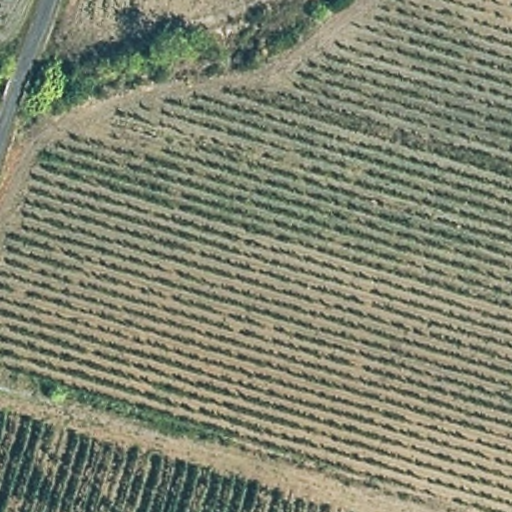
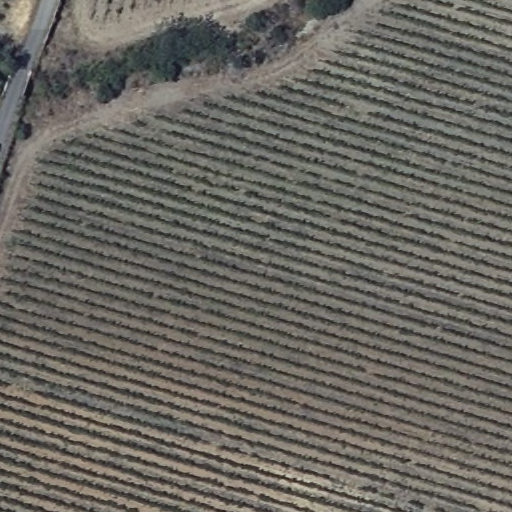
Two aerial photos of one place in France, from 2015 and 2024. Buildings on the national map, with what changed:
[]

